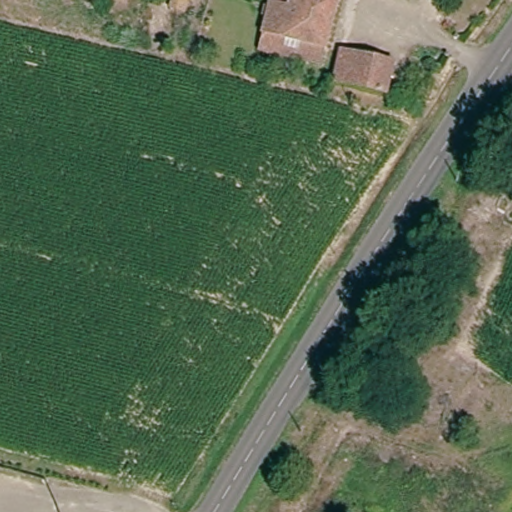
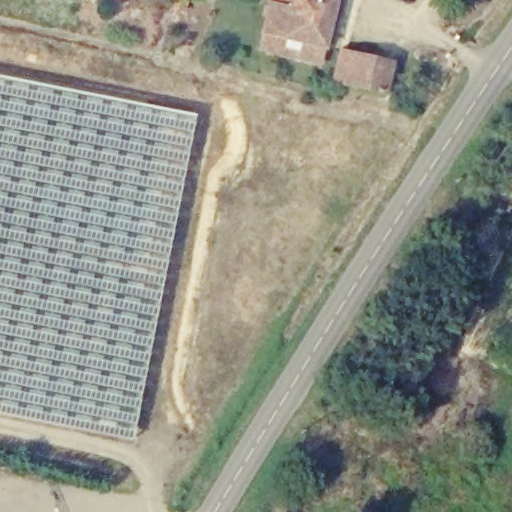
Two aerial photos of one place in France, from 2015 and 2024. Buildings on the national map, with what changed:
unchanged [(266,34),(271,5),(287,10),(290,0),(338,0),(325,50),(266,34)]
unchanged [(290,0),(287,10),(271,5),(273,0),(290,0)]
unchanged [(399,60),(391,87),(335,76),(344,45),(399,60)]
new [(131,440),(0,414),(0,78),(195,117),(131,440)]

